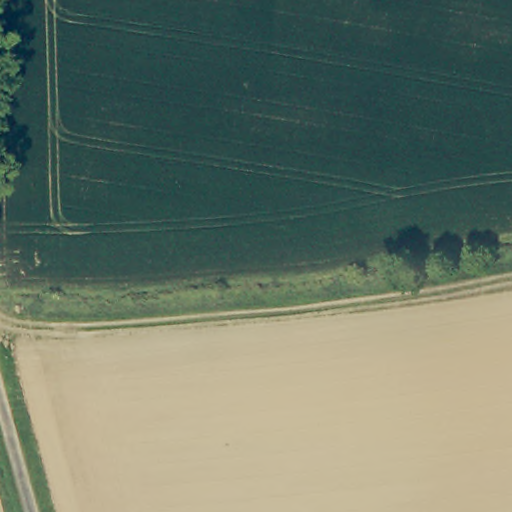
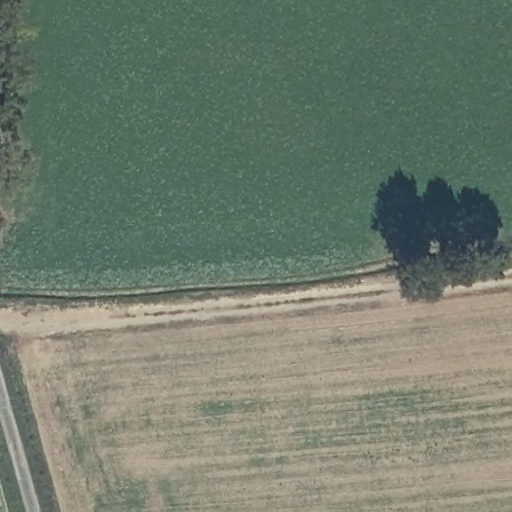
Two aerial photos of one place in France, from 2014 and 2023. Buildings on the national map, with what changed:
[]

